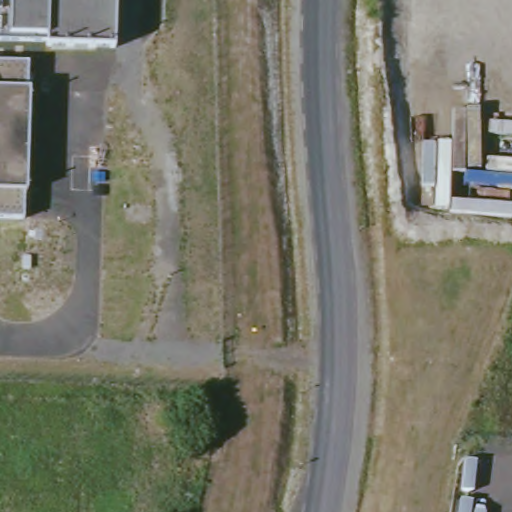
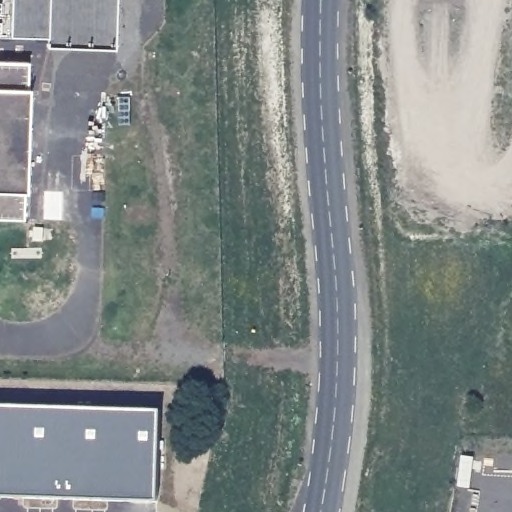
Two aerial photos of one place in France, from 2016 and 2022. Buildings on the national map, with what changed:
unchanged [(117,0),(116,46),(48,45),(48,40),(0,40),(0,0),(117,0)]
unchanged [(30,61),(29,86),(33,86),(32,139),(30,194),(27,194),(26,220),(0,219),(0,61),(30,61)]
new [(160,411),(158,502),(0,495),(0,406),(160,411)]

